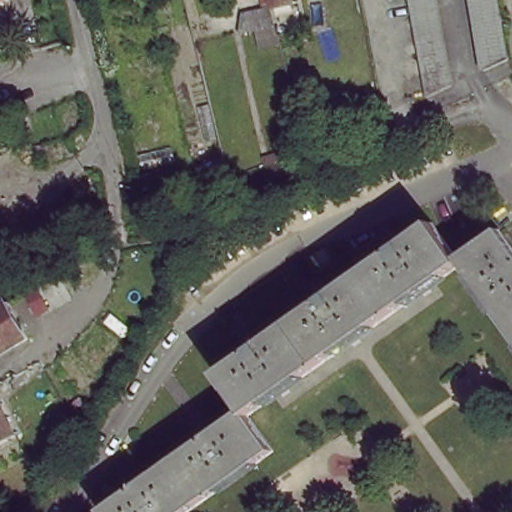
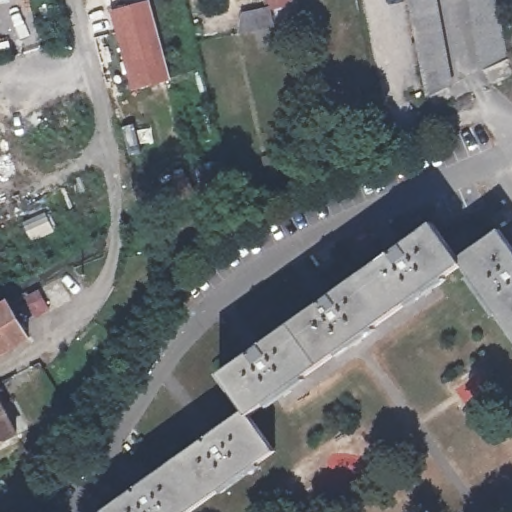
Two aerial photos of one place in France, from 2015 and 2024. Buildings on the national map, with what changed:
new [(132,90),(112,12),(148,0),(171,79),(132,90)]
unchanged [(265,0),(277,0),(265,2),(265,0)]
unchanged [(441,0),(457,83),(432,95),(413,0),(441,0)]
unchanged [(499,0),(510,62),(484,73),(471,0),(499,0)]
unchanged [(270,21),(234,29),(237,8),(265,2),(270,21)]
unchanged [(512,250),(512,332),(464,266),(252,420),(279,456),(200,512),(112,512),(249,414),(223,378),(435,227),(462,261),(500,234),(512,250)]
unchanged [(32,336),(0,354),(0,305),(10,298),(32,336)]
unchanged [(0,448),(0,397),(20,436),(0,448)]
unchanged [(0,509),(3,512),(0,512),(0,509)]

